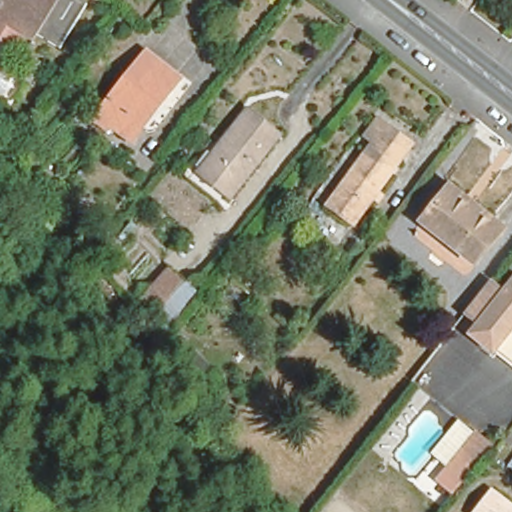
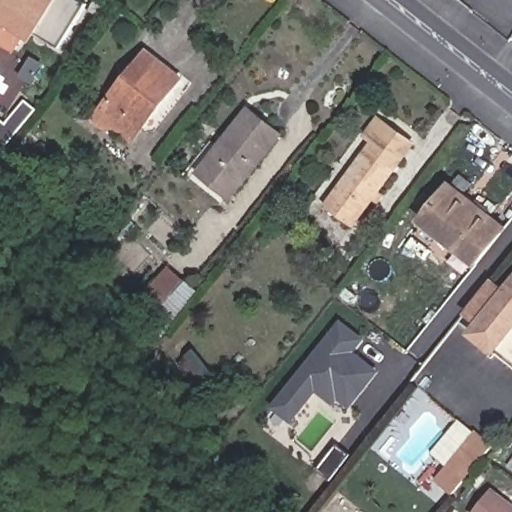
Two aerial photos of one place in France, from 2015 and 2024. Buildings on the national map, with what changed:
unchanged [(59,46),(31,28),(26,34),(0,19),(0,3),(2,0),(75,0),(84,6),(59,46)]
unchanged [(180,78),(131,140),(111,125),(107,129),(95,118),(145,52),(180,78)]
new [(5,121),(25,98),(36,108),(5,143),(0,139),(0,117),(5,121)]
unchanged [(222,142),(247,110),(281,136),(232,199),(202,175),(198,172),(222,142)]
unchanged [(325,209),(371,146),(364,140),(377,123),(412,149),(354,231),(325,209)]
unchanged [(481,269),(427,226),(452,194),(507,237),(481,269)]
unchanged [(160,314),(144,300),(169,268),(185,281),(160,314)]
unchanged [(465,333),(512,275),(512,322),(487,352),(465,333)]
new [(341,320),(365,338),(352,353),(377,371),(348,409),(338,401),(333,407),(317,393),(292,424),(271,407),(341,320)]
unchanged [(512,334),(512,365),(497,353),(512,334)]
unchanged [(475,430),(488,441),(459,478),(446,467),(475,430)]
new [(337,443),(351,455),(330,481),(316,470),(337,443)]
unchanged [(512,512),(472,512),(487,491),(512,511),(512,512)]

